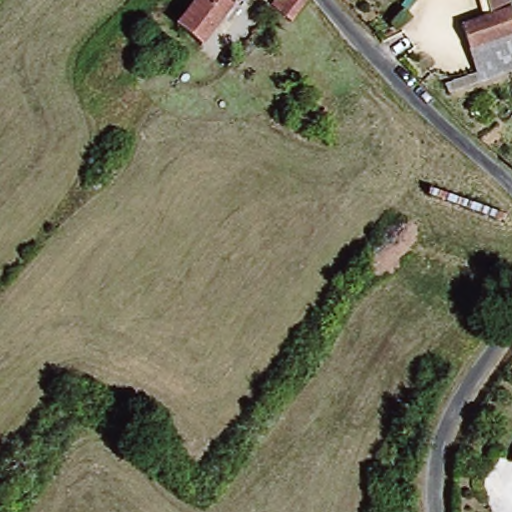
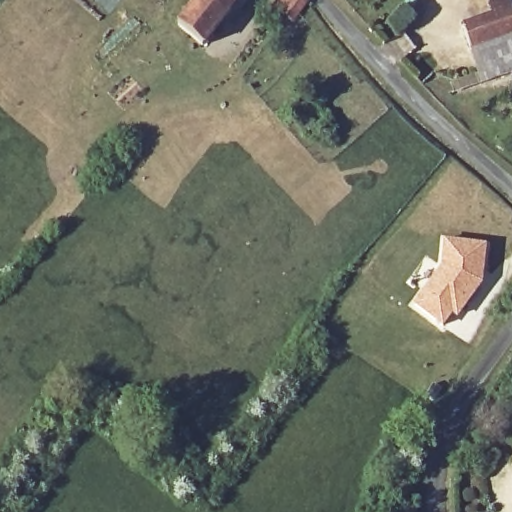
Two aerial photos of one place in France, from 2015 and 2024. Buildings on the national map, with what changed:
unchanged [(183,19),(196,0),(233,0),(206,36),(183,19)]
unchanged [(243,0),(239,5),(233,0),(243,0)]
unchanged [(304,0),(314,11),(297,33),(274,16),(288,0),(304,0)]
unchanged [(476,65),(457,11),(488,2),(487,0),(505,0),(512,22),(512,52),(476,65)]
unchanged [(476,65),(512,52),(512,71),(457,91),(452,74),(476,65)]
new [(439,266),(443,239),(487,243),(483,282),(458,317),(454,315),(442,325),(412,303),(439,266)]

